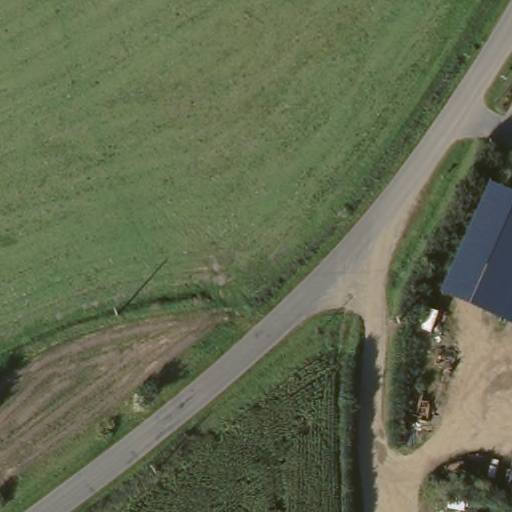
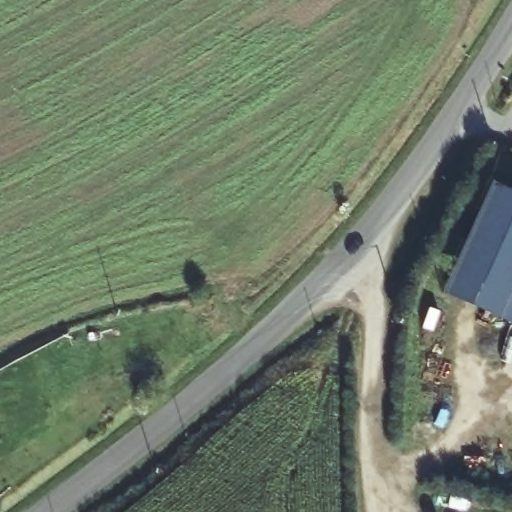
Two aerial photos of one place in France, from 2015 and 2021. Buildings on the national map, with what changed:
unchanged [(489,185),(512,195),(512,326),(443,296),(489,185)]

